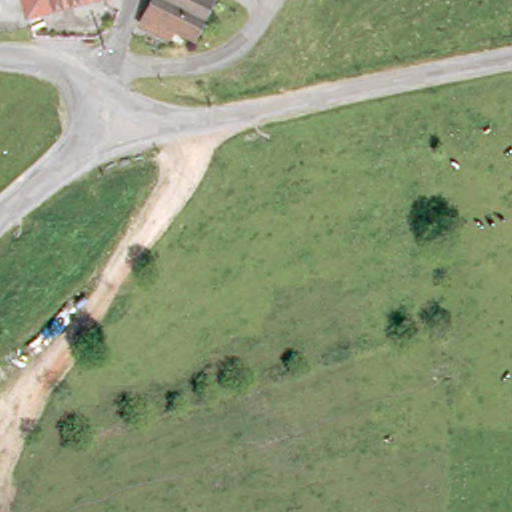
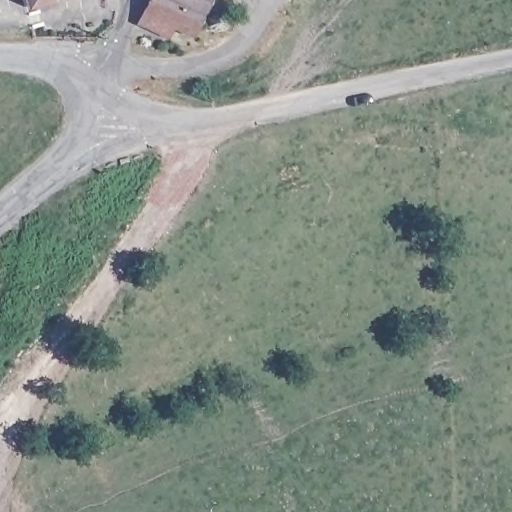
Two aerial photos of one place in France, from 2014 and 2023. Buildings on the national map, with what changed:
unchanged [(194,35),(175,25),(171,31),(168,37),(144,23),(140,20),(151,0),(210,0),(203,15),(194,35)]

